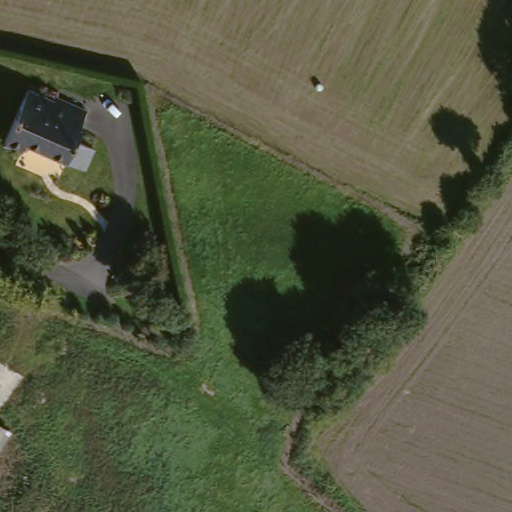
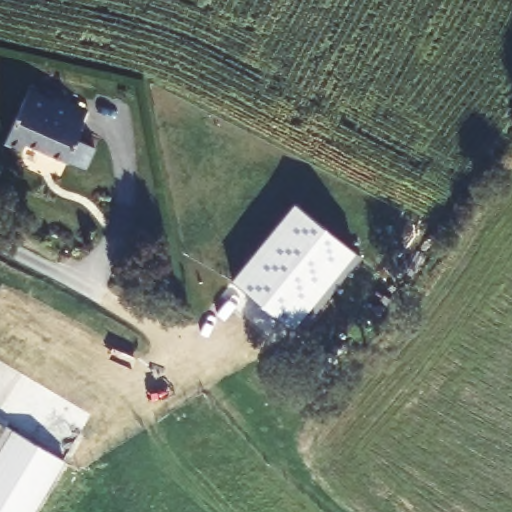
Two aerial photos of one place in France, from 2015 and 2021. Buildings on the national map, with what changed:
unchanged [(84,143),(103,153),(91,175),(29,140),(24,148),(5,138),(33,85),(97,118),(84,143)]
new [(298,336),(291,331),(233,283),(296,205),(354,252),(361,258),(298,336)]
unchanged [(4,424),(0,431),(0,422),(4,424)]

